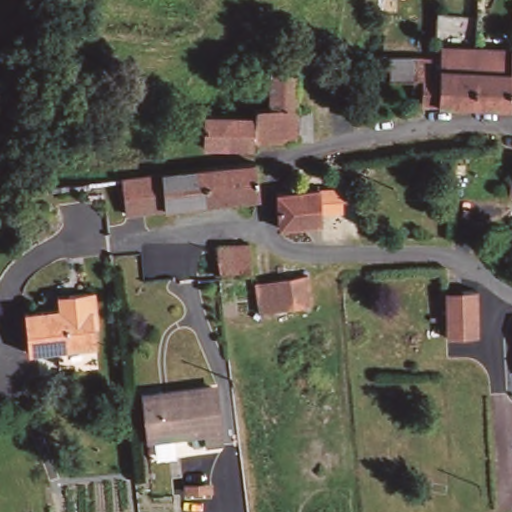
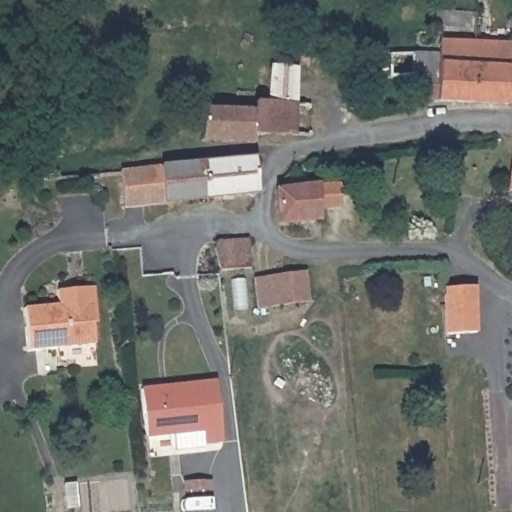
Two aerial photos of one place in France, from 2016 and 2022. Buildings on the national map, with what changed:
unchanged [(512,43),(512,52),(472,51),(472,72),(432,70),(432,52),(432,39),(512,43)]
unchanged [(432,70),(472,72),(470,114),(420,112),(419,100),(406,98),(407,86),(397,84),(391,84),(380,80),(373,72),(371,65),(372,59),(377,52),(391,51),(432,52),(432,70)]
unchanged [(512,52),(512,116),(470,114),(472,72),(472,51),(512,52)]
unchanged [(269,74),(269,66),(297,67),(300,105),(277,102),(272,101),(269,74)]
unchanged [(199,112),(236,114),(245,114),(252,114),(253,99),(272,101),(277,102),(300,105),(301,137),(255,134),(253,144),(200,143),(198,112),(199,112)]
unchanged [(196,162),(254,159),(258,199),(161,209),(158,167),(196,162)]
unchanged [(511,162),(512,162),(512,196),(509,196),(511,162)]
unchanged [(158,167),(161,209),(120,212),(115,172),(158,167)]
unchanged [(275,192),(314,188),(315,198),(316,224),(279,228),(275,202),(275,192)]
unchanged [(229,242),(251,241),(253,272),(218,274),(216,257),(215,246),(229,242)]
unchanged [(263,277),(310,273),(312,307),(262,311),(257,280),(263,277)]
unchanged [(475,280),(478,342),(447,344),(442,282),(475,280)]
unchanged [(84,295),(93,340),(30,353),(21,311),(84,295)]
unchanged [(162,383),(163,391),(216,385),(223,440),(204,442),(203,430),(146,435),(141,385),(162,383)]

